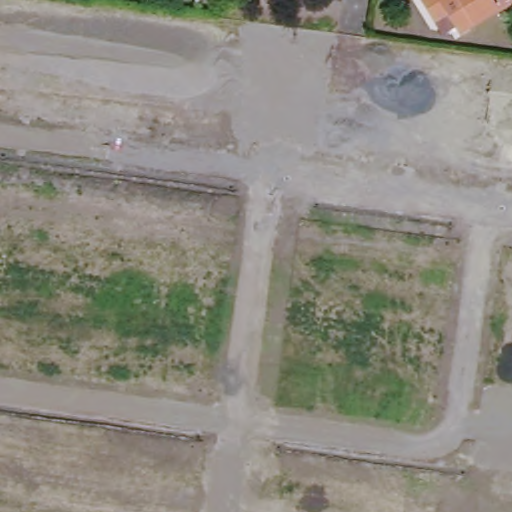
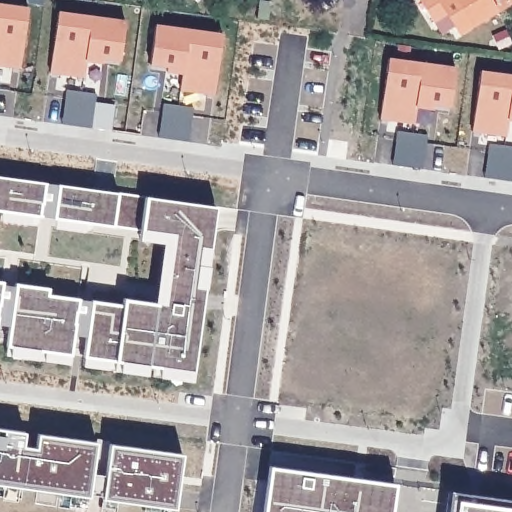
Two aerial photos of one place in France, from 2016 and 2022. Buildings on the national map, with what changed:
unchanged [(199,0),(206,0),(201,3),(199,0)]
unchanged [(501,10),(463,33),(452,15),(437,23),(422,0),(494,0),(495,1),(501,10)]
unchanged [(495,0),(495,1),(494,0),(495,0)]
new [(22,42),(20,65),(0,62),(0,3),(27,7),(22,42)]
new [(87,56),(84,77),(52,72),(60,14),(124,21),(119,60),(87,56)]
new [(222,111),(152,103),(157,35),(231,40),(222,111)]
new [(462,130),(432,125),(437,163),(390,157),(385,70),(462,70),(462,130)]
new [(489,180),(489,76),(512,79),(512,181),(489,180)]
new [(0,281),(49,287),(47,295),(79,298),(123,305),(124,299),(155,303),(162,242),(140,239),(142,227),(113,223),(0,209),(0,176),(117,192),(216,206),(193,368),(117,360),(0,343),(0,281)]
new [(89,495),(0,482),(0,428),(96,442),(89,495)]
new [(181,455),(175,507),(104,497),(111,444),(181,455)]
new [(270,467),(393,483),(389,512),(264,512),(270,467)]
new [(450,491),(512,498),(512,512),(447,512),(450,491)]

